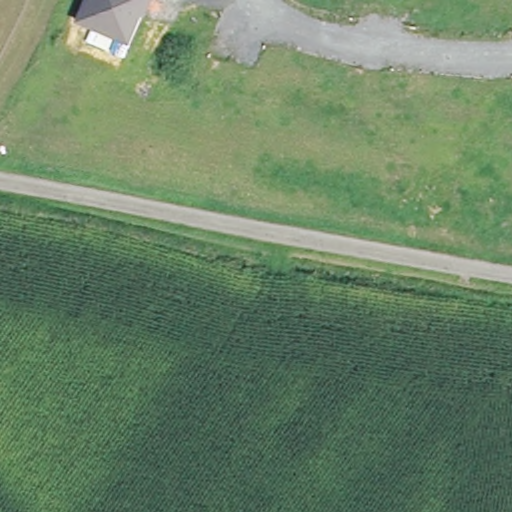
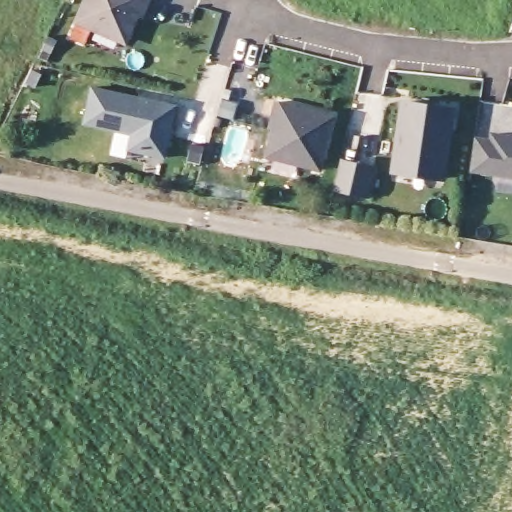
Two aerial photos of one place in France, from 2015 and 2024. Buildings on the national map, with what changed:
unchanged [(142,10),(129,40),(122,44),(77,24),(87,0),(151,0),(146,12),(142,10)]
unchanged [(54,46),(47,58),(39,54),(46,41),(54,46)]
new [(137,98),(137,101),(142,102),(142,99),(175,106),(163,158),(127,150),(131,135),(82,124),(91,87),(137,98)]
new [(452,105),(442,175),(393,167),(403,98),(452,105)]
new [(332,117),(320,171),(271,160),(267,154),(275,121),(271,120),(275,104),(332,117)]
new [(492,135),(512,138),(512,178),(470,171),(474,140),(491,142),(492,135)]
new [(332,190),(338,159),(376,165),(370,197),(332,190)]

